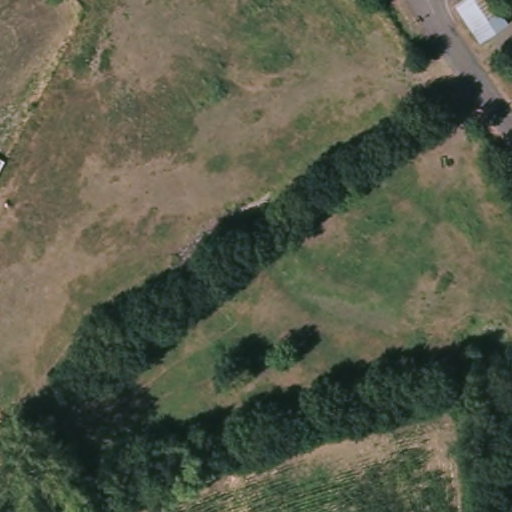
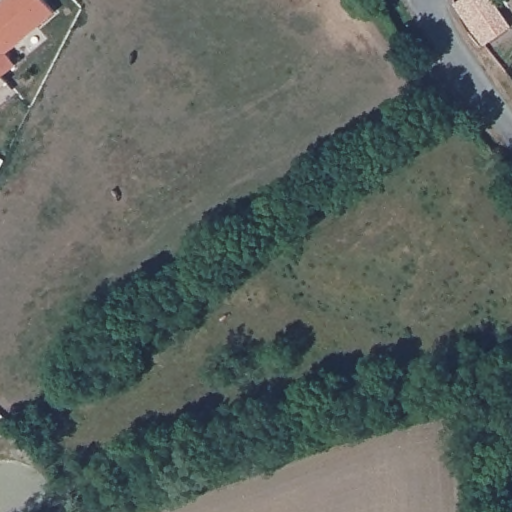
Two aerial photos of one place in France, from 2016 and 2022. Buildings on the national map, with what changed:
new [(1,0),(43,0),(52,10),(3,52),(13,64),(0,75),(0,1),(1,0)]
unchanged [(481,0),(498,25),(495,27),(481,35),(466,9),(481,0)]
new [(4,80),(0,83),(0,76),(4,80)]

